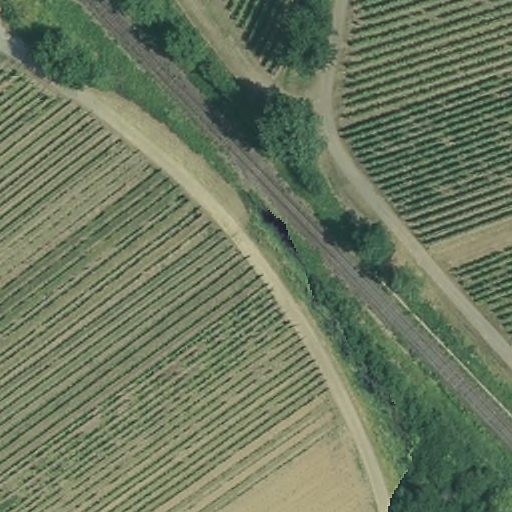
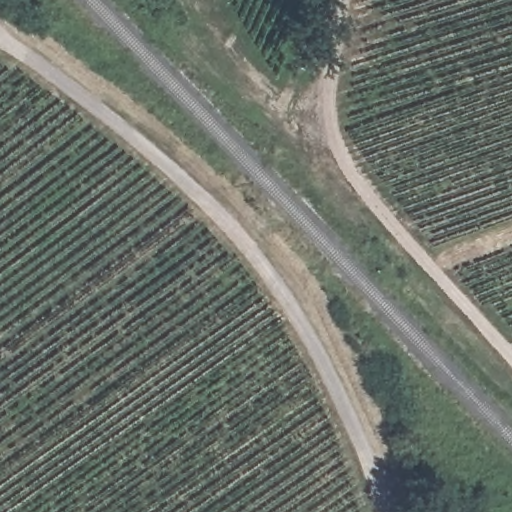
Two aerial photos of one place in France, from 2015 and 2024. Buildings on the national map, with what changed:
[]

